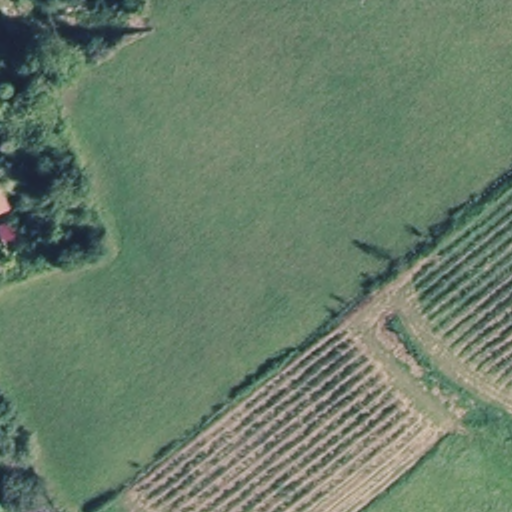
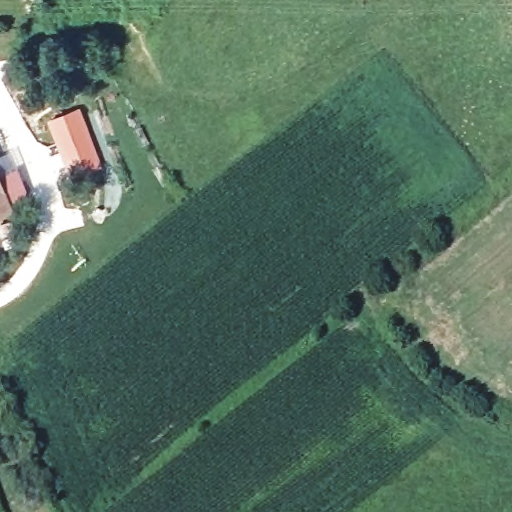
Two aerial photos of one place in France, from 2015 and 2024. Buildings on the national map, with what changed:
new [(46,116),(80,105),(102,167),(67,176),(46,116)]
unchanged [(19,213),(5,217),(6,210),(0,211),(0,191),(4,204),(15,200),(19,213)]

